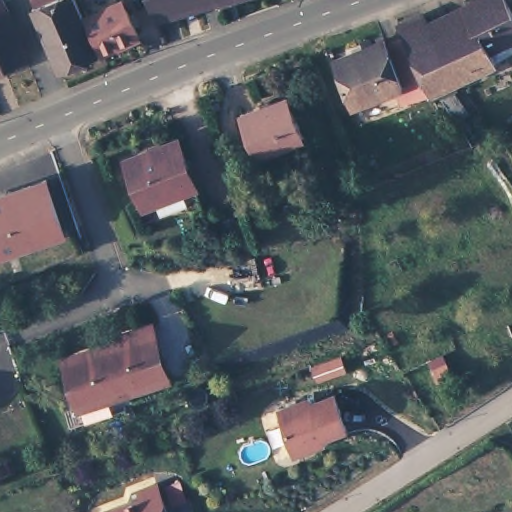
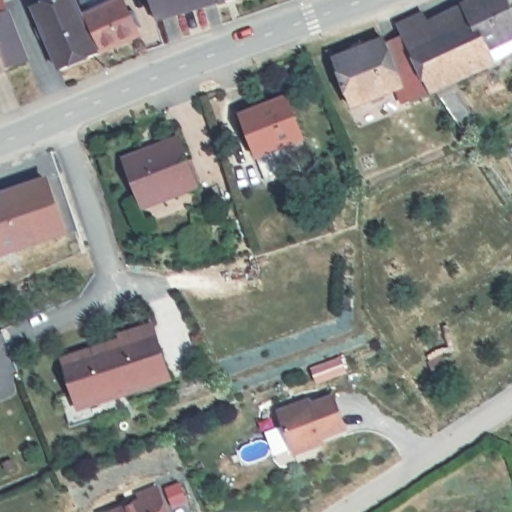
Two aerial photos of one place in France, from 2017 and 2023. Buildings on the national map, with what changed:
unchanged [(27,14),(33,12),(29,0),(65,0),(93,62),(55,77),(27,14)]
unchanged [(234,0),(192,12),(189,2),(171,8),(173,17),(149,25),(142,0),(234,0)]
unchanged [(397,44),(391,32),(416,22),(420,30),(462,12),(460,7),(472,1),(472,3),(475,6),(489,0),(495,0),(512,33),(512,40),(481,55),(488,69),(427,98),(425,99),(397,44)]
unchanged [(81,23),(116,9),(124,21),(125,24),(130,21),(133,29),(128,31),(133,44),(97,61),(81,23)]
unchanged [(2,16),(21,66),(5,72),(0,74),(0,17),(2,16)]
unchanged [(403,108),(397,96),(346,116),(326,67),(376,47),(378,50),(397,44),(425,99),(403,108)]
unchanged [(236,123),(256,115),(256,116),(283,107),(300,147),(253,165),(236,123)]
unchanged [(137,214),(135,210),(118,167),(172,146),(188,189),(190,194),(137,214)]
unchanged [(35,187),(53,242),(0,260),(0,200),(35,187)]
unchanged [(133,393),(116,399),(73,412),(68,396),(58,363),(116,345),(115,339),(145,330),(153,357),(161,384),(133,393)]
unchanged [(334,390),(345,430),(325,438),(326,444),(292,457),(276,411),(334,390)]
unchanged [(73,412),(116,399),(120,413),(63,431),(54,400),(68,396),(73,412)]
unchanged [(133,500),(131,494),(156,485),(160,490),(176,483),(183,503),(166,510),(167,512),(102,512),(133,500)]

